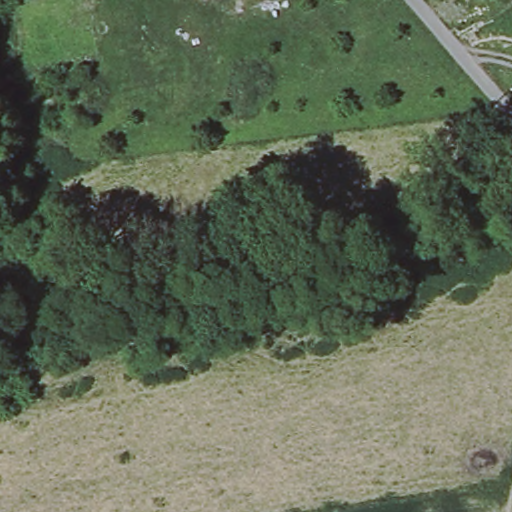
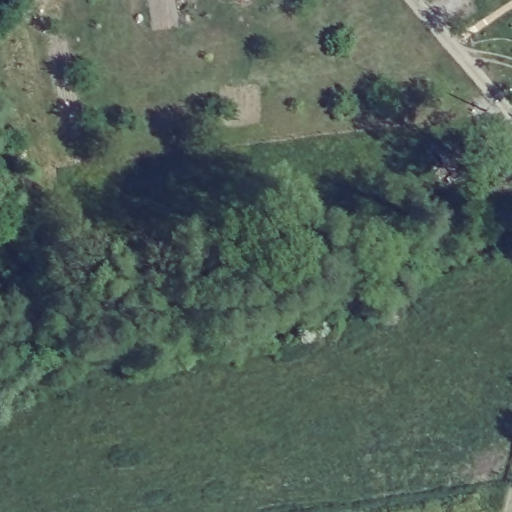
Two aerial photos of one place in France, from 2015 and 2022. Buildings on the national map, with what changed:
[]

